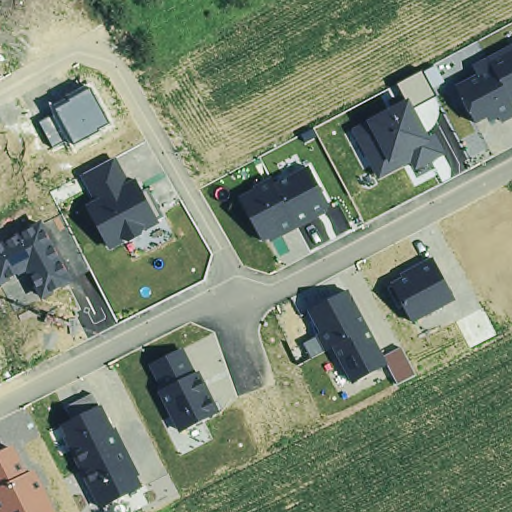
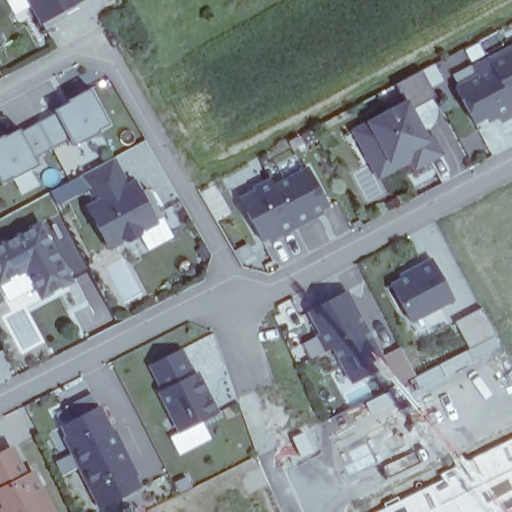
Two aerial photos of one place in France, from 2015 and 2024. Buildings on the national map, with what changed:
new [(41,23),(28,0),(83,0),(41,23)]
unchanged [(454,87),(477,74),(473,65),(512,45),(512,120),(504,125),(497,113),(476,124),(454,87)]
unchanged [(414,110),(429,140),(435,135),(445,153),(419,169),(414,160),(381,180),(354,132),(371,122),(405,102),(396,86),(437,64),(446,82),(433,90),(437,98),(414,110)]
unchanged [(39,125),(58,115),(53,108),(91,87),(112,123),(73,144),(70,138),(53,148),(39,125)]
new [(39,166),(3,185),(0,179),(0,139),(19,129),(23,134),(39,125),(53,148),(36,158),(39,166)]
unchanged [(88,206),(95,202),(83,177),(116,160),(128,183),(136,180),(143,192),(148,189),(163,215),(157,219),(159,224),(111,251),(88,206)]
unchanged [(239,197),(271,179),(275,185),(308,166),(331,209),(274,242),(271,237),(263,241),(239,197)]
unchanged [(73,283),(40,302),(25,272),(0,286),(0,245),(39,223),(73,283)]
unchanged [(390,282),(434,257),(457,299),(412,323),(390,282)]
unchanged [(388,365),(352,383),(332,345),(326,349),(310,313),(349,291),(384,355),(401,346),(417,375),(397,385),(388,365)]
new [(485,308),(499,335),(473,349),(459,322),(485,308)]
unchanged [(158,392),(164,387),(151,364),(182,350),(194,374),(199,372),(221,413),(181,433),(158,392)]
unchanged [(61,426),(71,419),(65,407),(89,395),(95,408),(101,404),(143,486),(100,509),(61,426)]
new [(441,474),(512,437),(512,496),(502,501),(507,512),(376,512),(443,478),(441,474)]
unchanged [(28,474),(35,470),(56,512),(0,512),(0,452),(13,445),(28,474)]

